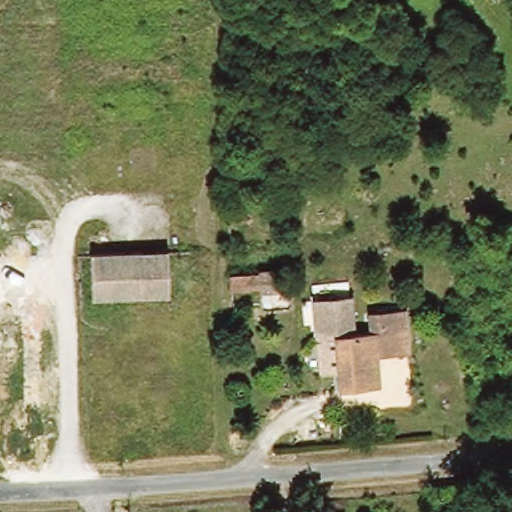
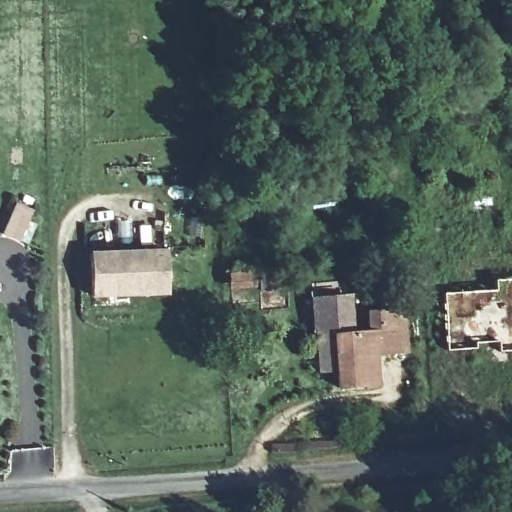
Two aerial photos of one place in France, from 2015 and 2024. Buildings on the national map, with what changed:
unchanged [(88,249),(165,243),(167,286),(91,292),(88,249)]
unchanged [(284,290),(261,291),(260,283),(233,284),(232,276),(258,275),(258,269),(284,267),(284,290)]
new [(495,279),(512,278),(512,349),(499,349),(499,340),(475,341),(475,348),(447,350),(443,293),(496,288),(495,279)]
unchanged [(377,329),(378,307),(413,306),(414,348),(381,349),(382,385),(337,386),(337,326),(317,327),(317,296),(353,294),(353,330),(377,329)]

